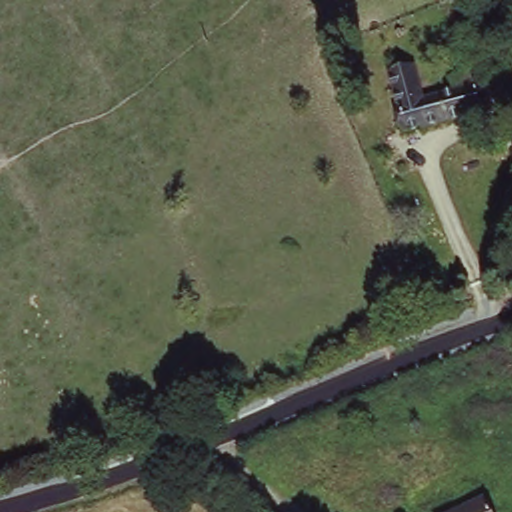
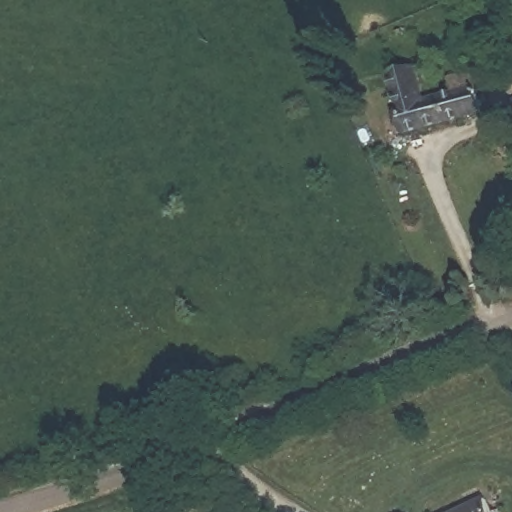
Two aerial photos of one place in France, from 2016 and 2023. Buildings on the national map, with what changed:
unchanged [(488,35),(512,23),(512,57),(500,62),(488,35)]
unchanged [(397,80),(395,70),(422,65),(424,75),(426,86),(418,89),(421,100),(428,99),(460,92),(456,80),(478,75),(480,81),(494,78),(498,91),(483,94),(489,114),(428,128),(406,132),(401,104),(397,80)]
unchanged [(497,512),(452,512),(487,494),(497,512)]

